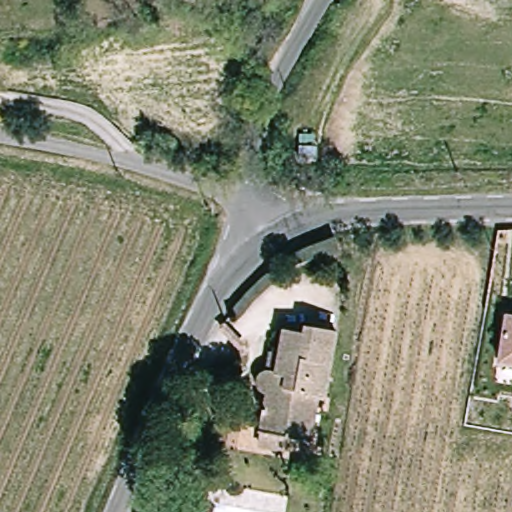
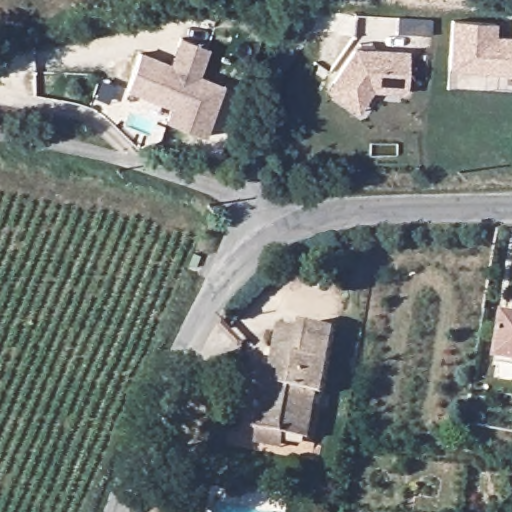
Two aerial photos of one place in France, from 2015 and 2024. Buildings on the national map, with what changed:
new [(497,24),(496,36),(512,37),(512,75),(448,70),(452,21),(497,24)]
new [(170,65),(181,40),(211,51),(201,77),(223,86),(203,137),(163,120),(169,108),(126,90),(141,53),(170,65)]
new [(354,49),(409,52),(406,95),(372,92),(357,114),(326,91),(354,49)]
unchanged [(499,359),(506,314),(512,315),(512,361),(499,359)]
unchanged [(259,432),(261,420),(266,385),(264,385),(263,383),(261,382),(259,381),(259,380),(258,377),(257,376),(256,374),(256,372),(256,370),(257,368),(258,366),(259,365),(261,363),(261,362),(264,361),(265,360),(267,360),(269,360),(271,360),(276,338),(281,339),(284,325),(306,328),(308,321),(339,327),(329,396),(317,394),(312,420),(310,431),(289,426),(288,436),(259,432)]

